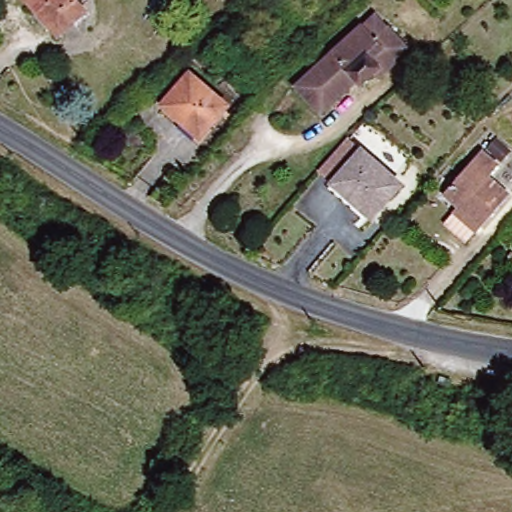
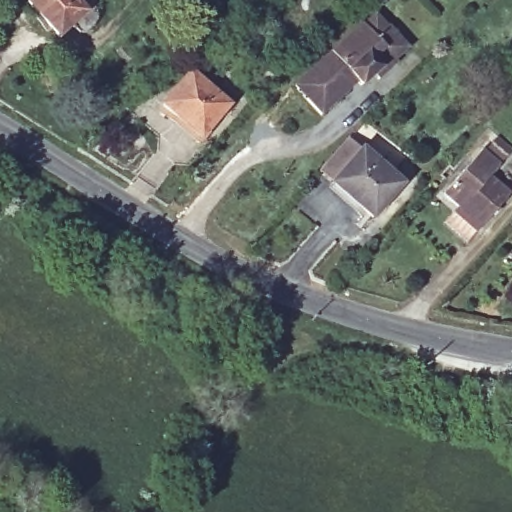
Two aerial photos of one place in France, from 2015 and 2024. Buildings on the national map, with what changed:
unchanged [(90,15),(62,40),(26,0),(75,0),(90,15)]
unchanged [(325,61),(335,52),(353,36),(364,27),(366,30),(377,20),(387,28),(393,24),(413,47),(397,61),(402,68),(383,83),(378,79),(365,89),(362,84),(327,114),(297,86),(325,61)]
unchanged [(235,107),(207,138),(170,106),(197,75),(235,107)]
unchanged [(407,184),(375,217),(336,183),(368,150),(407,184)]
unchanged [(463,202),(450,190),(470,168),(475,164),(487,151),(505,167),(496,177),(512,192),(512,196),(485,223),(479,230),(457,209),(463,202)]

